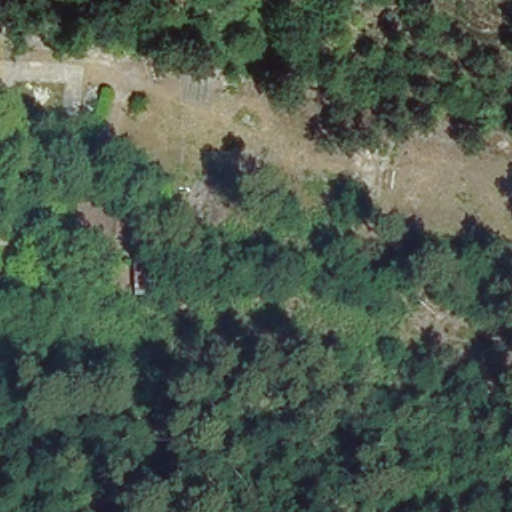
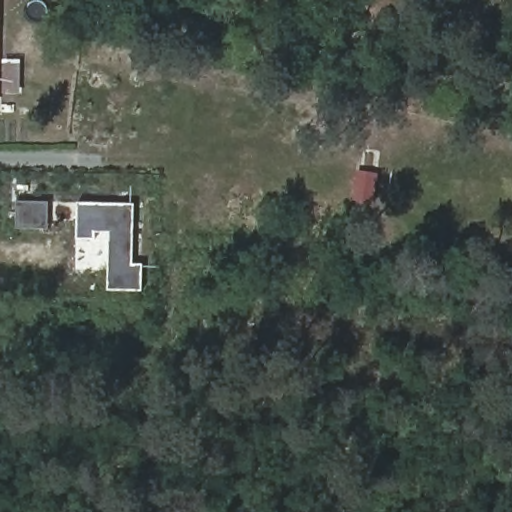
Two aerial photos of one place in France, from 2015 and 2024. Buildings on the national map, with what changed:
new [(48,229),(15,228),(16,200),(48,201),(48,229)]
new [(134,203),(133,263),(142,263),(141,290),(106,290),(108,232),(94,232),(94,239),(76,239),(76,202),(134,203)]
demolished [(118,235),(64,233),(64,209),(118,211),(118,235)]

